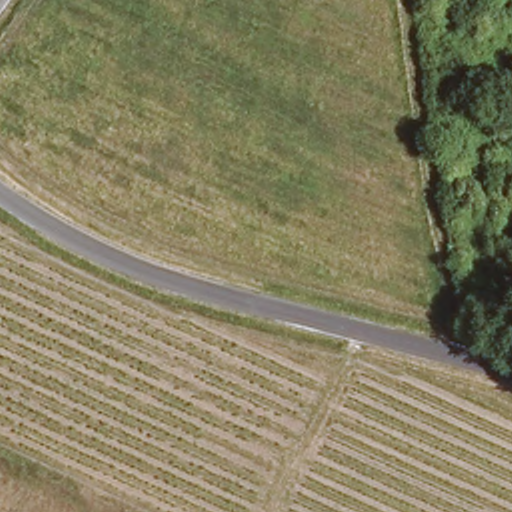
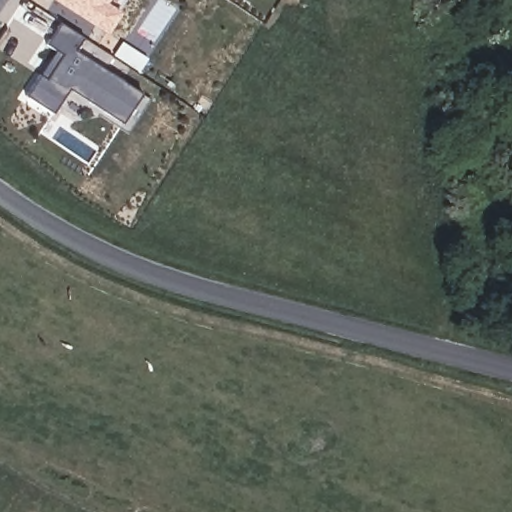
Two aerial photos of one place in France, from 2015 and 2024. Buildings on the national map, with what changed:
new [(125,14),(112,34),(57,2),(59,0),(112,0),(111,3),(125,14)]
new [(52,113),(22,95),(37,72),(40,75),(56,50),(44,42),(58,23),(82,40),(74,50),(139,95),(119,124),(68,90),(52,113)]
new [(120,42),(146,58),(137,72),(111,56),(120,42)]

